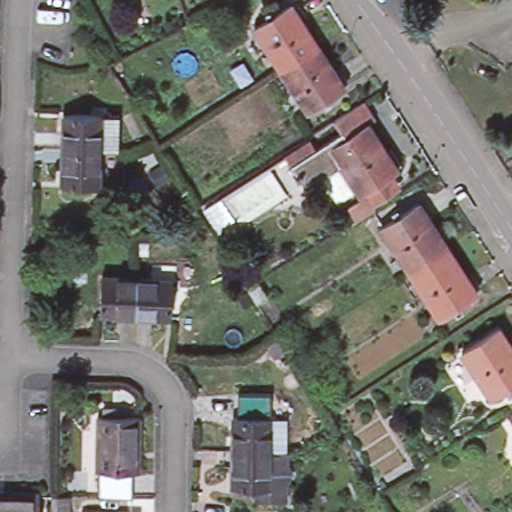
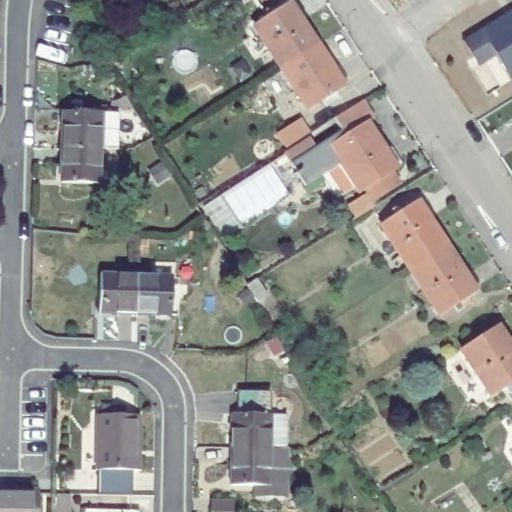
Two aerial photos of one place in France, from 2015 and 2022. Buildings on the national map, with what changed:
unchanged [(277,70),(251,28),(286,5),(313,47),(277,70)]
new [(500,55),(480,66),(465,39),(512,10),(512,78),(500,55)]
unchanged [(313,47),(340,89),(304,111),(277,70),(313,47)]
unchanged [(48,184),(49,150),(50,115),(95,116),(115,116),(115,151),(95,150),(93,185),(48,184)]
unchanged [(363,130),(393,176),(357,200),(337,170),(327,154),(343,144),(363,130)]
unchanged [(287,170),(288,169),(283,160),(302,147),(308,156),(339,137),(343,144),(327,154),(337,170),(302,194),(287,170)]
unchanged [(285,191),(237,221),(220,194),(267,164),(285,191)]
unchanged [(415,205),(443,249),(407,273),(377,229),(415,205)]
unchanged [(443,249),(472,294),(436,318),(407,273),(443,249)]
unchanged [(100,320),(100,280),(135,280),(135,321),(100,320)]
unchanged [(170,281),(170,322),(135,321),(135,280),(170,281)]
unchanged [(248,288),(257,283),(267,300),(259,305),(248,288)]
unchanged [(500,330),(512,349),(512,387),(493,400),(463,353),(500,330)]
unchanged [(291,472),(285,481),(284,498),(259,497),(259,486),(230,486),(231,452),(232,420),(237,420),(237,397),(270,397),(270,420),(285,421),(284,453),(285,453),(285,463),(291,472)]
unchanged [(93,497),(95,415),(137,416),(137,476),(132,476),(131,498),(93,497)]
unchanged [(34,512),(0,512),(0,496),(34,496),(34,512)]
unchanged [(64,496),(63,512),(51,512),(51,496),(64,496)]

